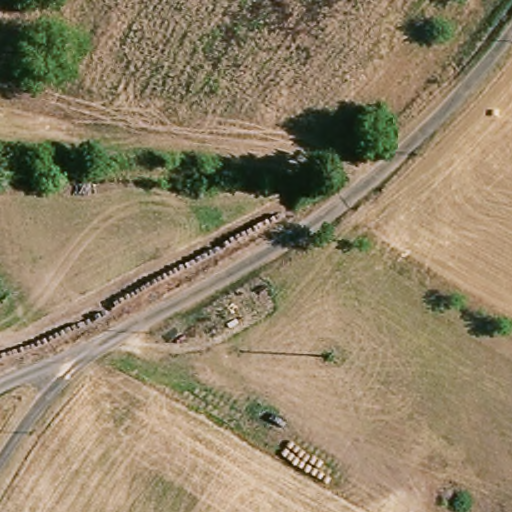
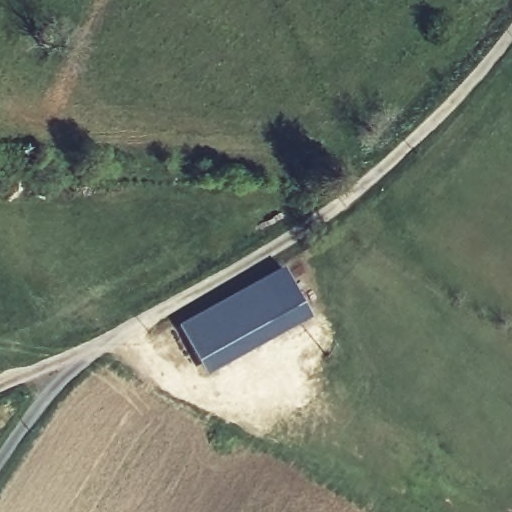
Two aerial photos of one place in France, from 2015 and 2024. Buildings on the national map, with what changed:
new [(284,272),(311,323),(205,380),(178,330),(284,272)]

